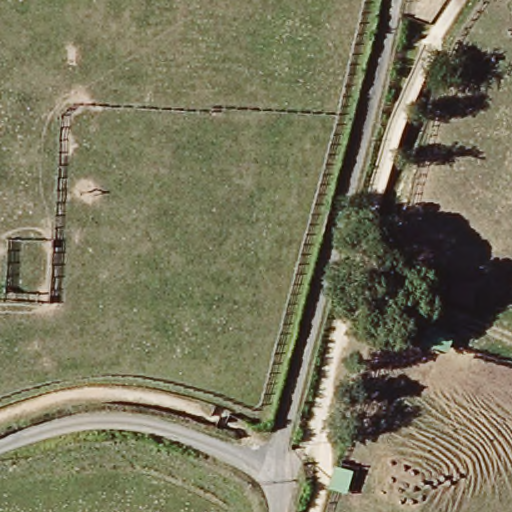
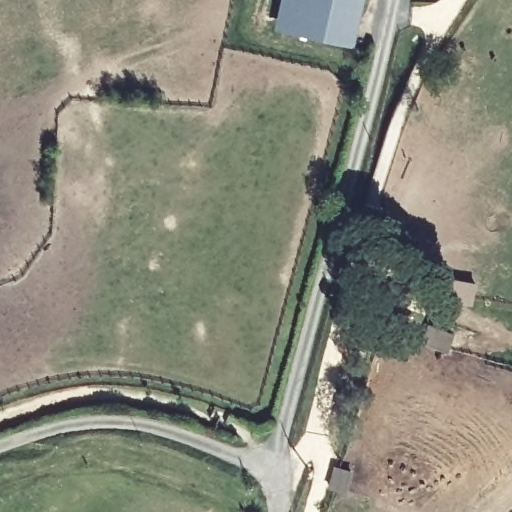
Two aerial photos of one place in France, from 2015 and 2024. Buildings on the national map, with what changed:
new [(355,47),(274,29),(281,0),(365,0),(355,47)]

